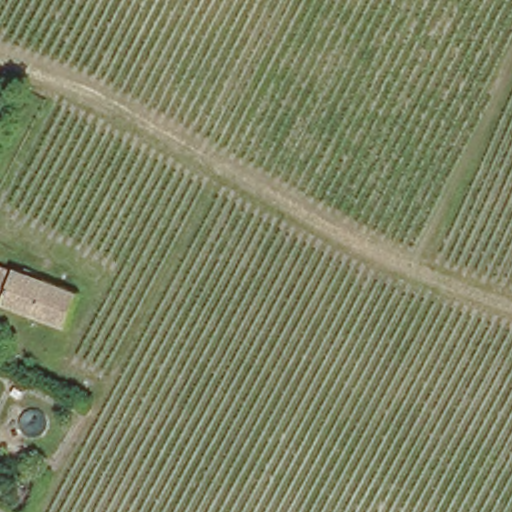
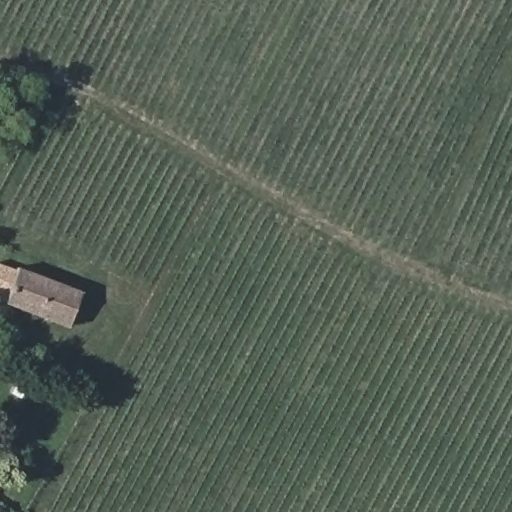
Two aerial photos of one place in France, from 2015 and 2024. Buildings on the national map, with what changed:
unchanged [(69,331),(1,302),(18,270),(81,298),(69,331)]

